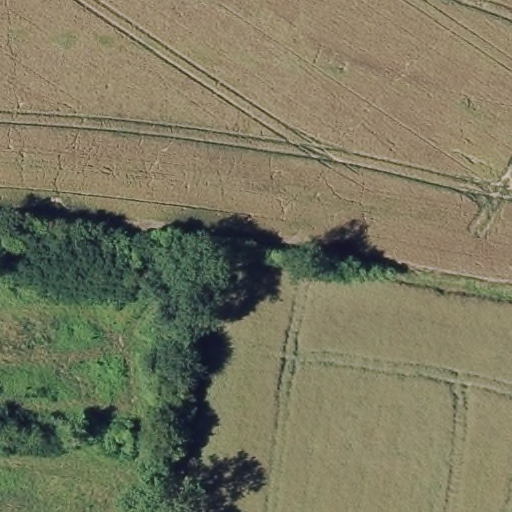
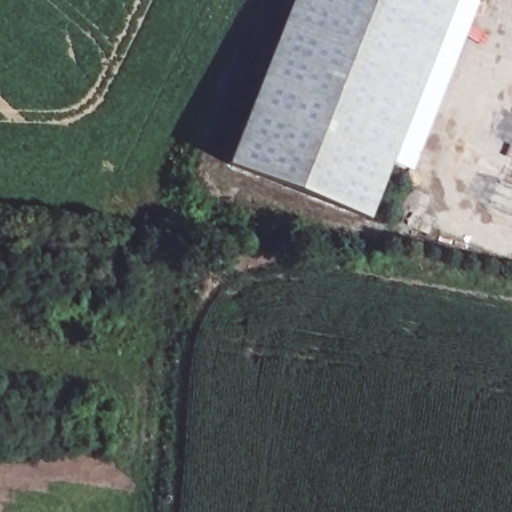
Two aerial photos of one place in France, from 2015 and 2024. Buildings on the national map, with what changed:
new [(229,166),(294,0),(464,0),(474,4),(412,162),(409,166),(394,161),(371,221),(229,166)]

